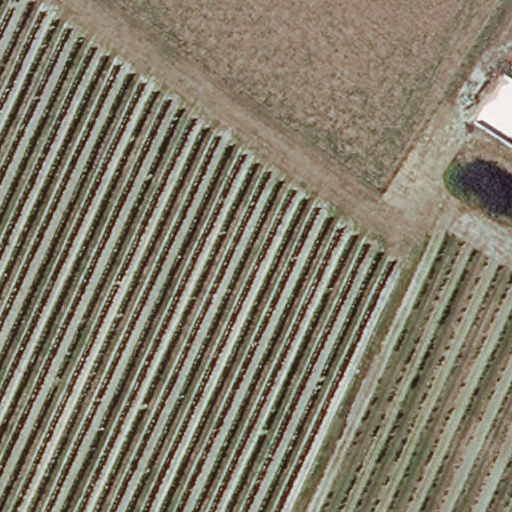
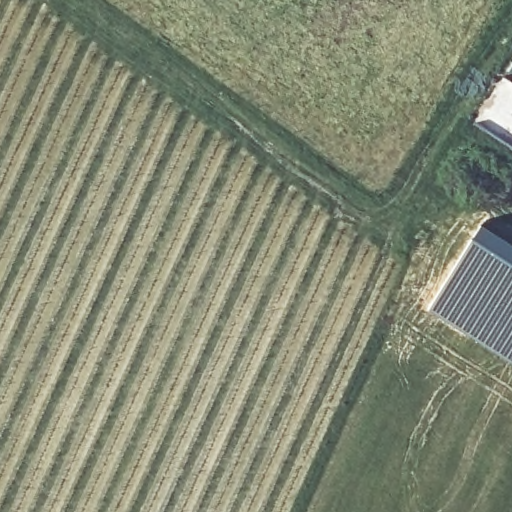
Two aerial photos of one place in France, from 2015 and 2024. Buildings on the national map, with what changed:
new [(487,220),(512,236),(512,358),(493,346),(428,307),(487,220)]

